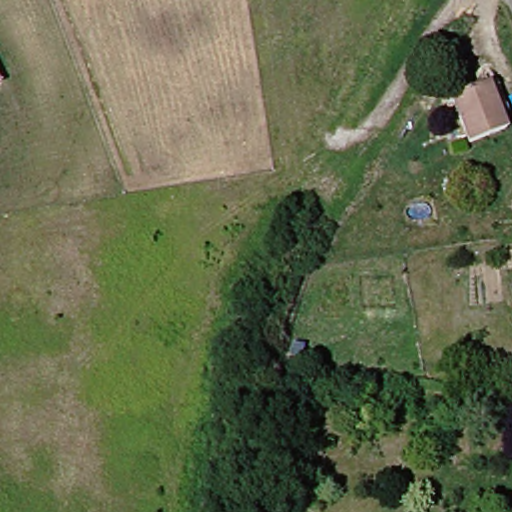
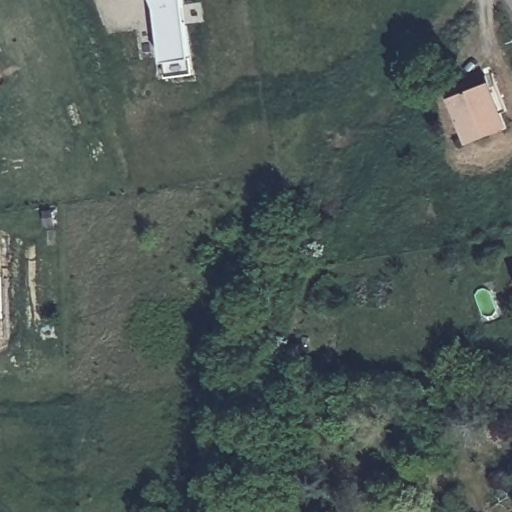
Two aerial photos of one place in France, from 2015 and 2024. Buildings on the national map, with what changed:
new [(162,65),(155,11),(149,0),(178,0),(187,60),(162,65)]
unchanged [(495,129),(462,138),(447,88),(480,77),(495,129)]
unchanged [(1,87),(0,87),(0,86),(1,87)]

